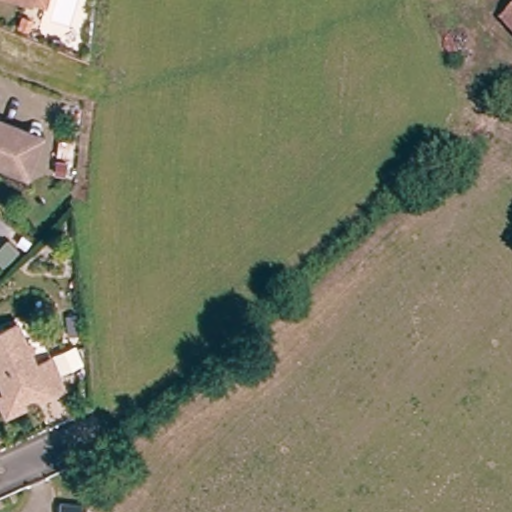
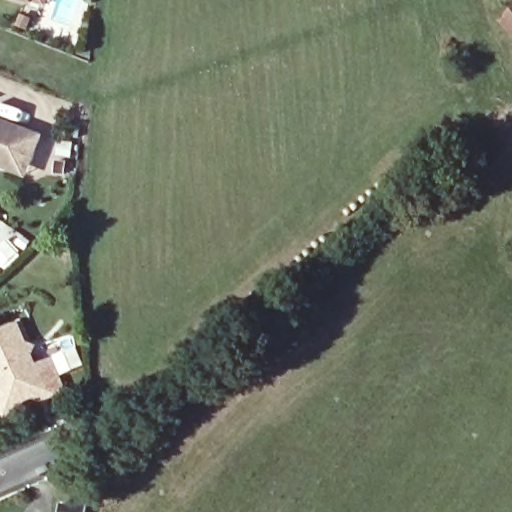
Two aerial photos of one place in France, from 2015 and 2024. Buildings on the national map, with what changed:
unchanged [(40,1),(34,0),(40,0),(40,1)]
unchanged [(512,22),(512,44),(501,32),(512,22)]
unchanged [(30,129),(48,135),(34,174),(16,167),(0,162),(0,118),(30,129)]
unchanged [(0,362),(0,334),(25,323),(34,342),(41,345),(38,352),(43,365),(58,358),(71,390),(56,397),(15,415),(7,396),(14,393),(0,362)]

